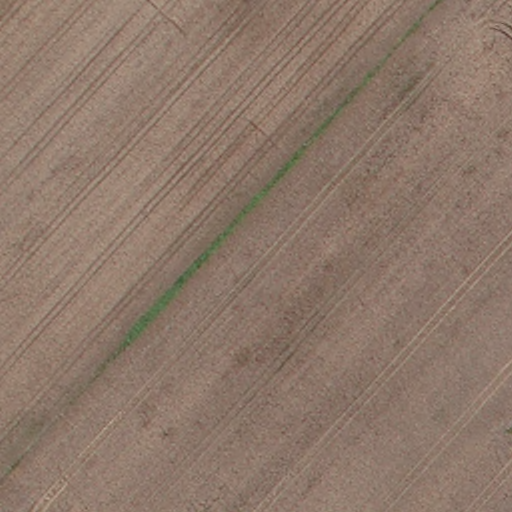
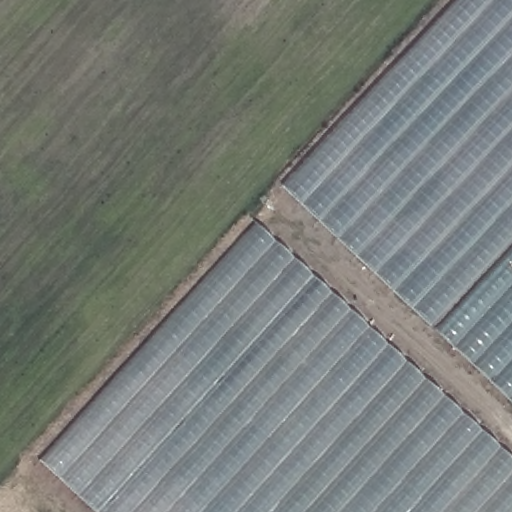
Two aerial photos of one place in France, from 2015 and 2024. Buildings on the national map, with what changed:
new [(512,0),(512,238),(427,328),(279,188),(455,0),(512,0)]
new [(253,224),(501,445),(512,457),(512,507),(508,512),(91,512),(35,461),(253,224)]
new [(435,330),(512,248),(512,405),(435,330)]

